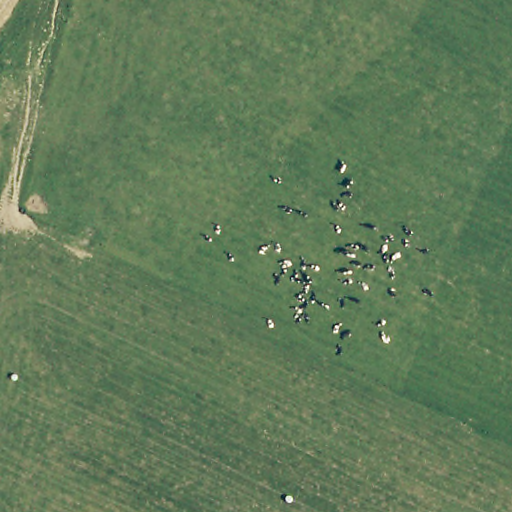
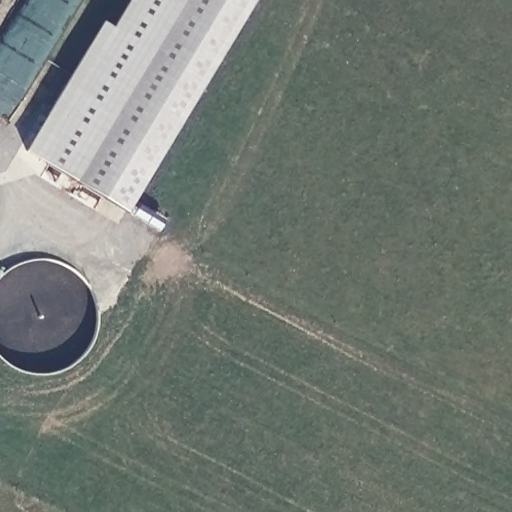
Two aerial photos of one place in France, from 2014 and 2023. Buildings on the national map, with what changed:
new [(126,211),(27,151),(102,20),(114,27),(130,0),(255,0),(126,211)]

